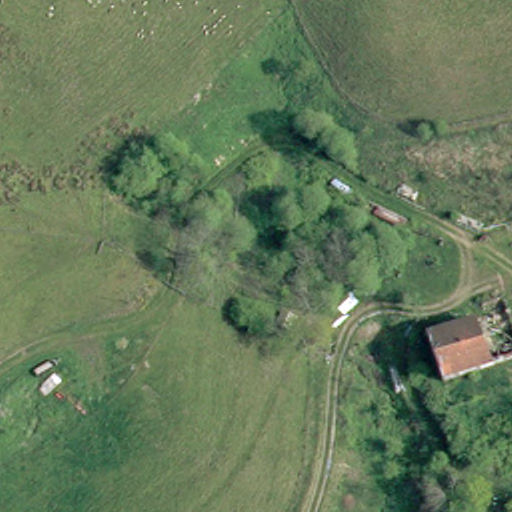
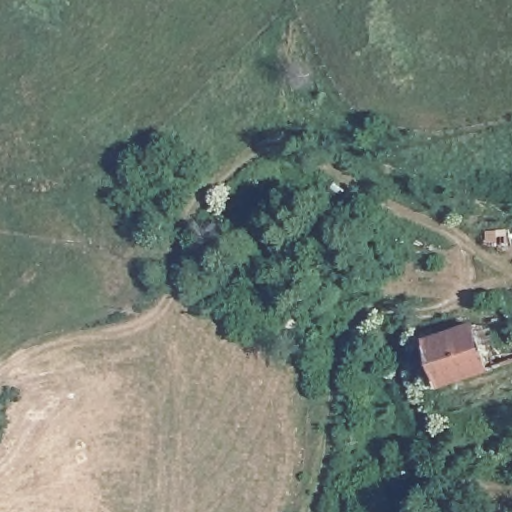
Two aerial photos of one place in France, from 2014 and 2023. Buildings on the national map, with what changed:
unchanged [(489,315),(484,300),(503,294),(512,322),(512,362),(447,385),(429,336),(489,315)]

